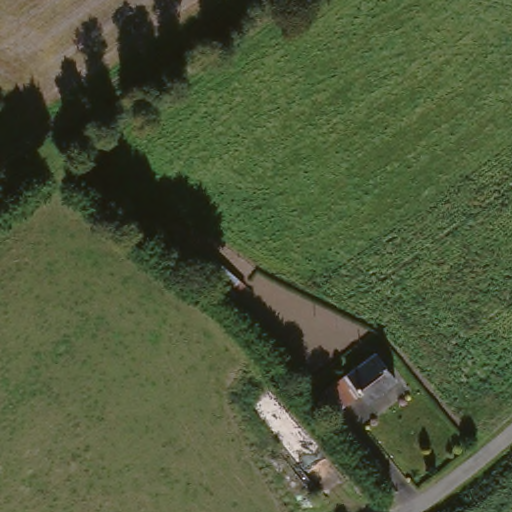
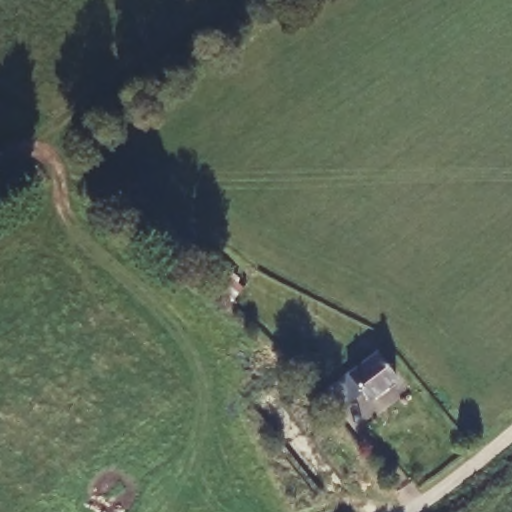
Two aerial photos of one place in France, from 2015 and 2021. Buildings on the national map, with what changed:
unchanged [(393,382),(368,403),(362,396),(337,417),(319,396),(369,354),(393,382)]

